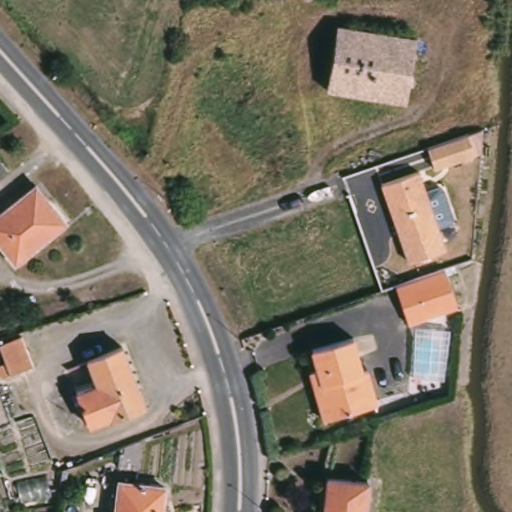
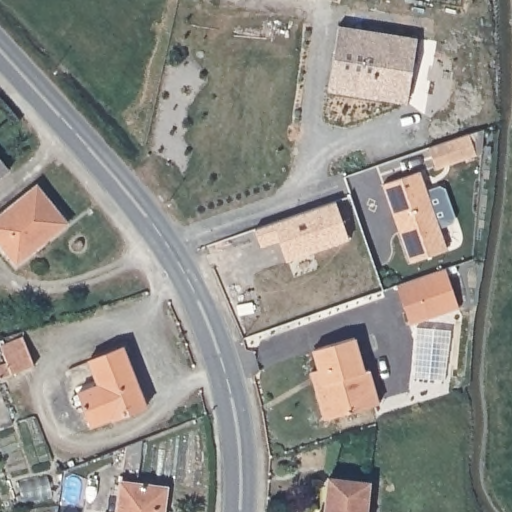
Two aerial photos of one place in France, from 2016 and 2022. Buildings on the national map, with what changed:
unchanged [(333,2),(318,0),(333,0),(333,2)]
unchanged [(361,36),(415,44),(406,107),(327,95),(337,32),(361,36)]
unchanged [(418,170),(446,247),(410,261),(383,182),(418,170)]
unchanged [(3,175),(0,178),(0,171),(3,175)]
unchanged [(0,249),(0,220),(36,190),(52,210),(66,229),(60,234),(15,268),(0,249)]
new [(348,239),(285,260),(277,239),(260,245),(254,229),(334,201),(348,239)]
unchanged [(399,312),(395,302),(391,288),(440,272),(445,286),(454,312),(422,322),(404,328),(399,312)]
unchanged [(348,339),(358,372),(363,370),(373,405),(319,420),(309,386),(304,372),(312,370),(306,351),(348,339)]
unchanged [(17,342),(28,370),(0,381),(0,367),(1,366),(0,363),(0,349),(17,342)]
unchanged [(92,390),(83,365),(116,352),(141,411),(106,425),(106,423),(87,431),(72,397),(92,390)]
unchanged [(362,488),(360,512),(320,512),(323,484),(362,488)]
unchanged [(170,494),(168,512),(122,512),(125,487),(170,494)]

